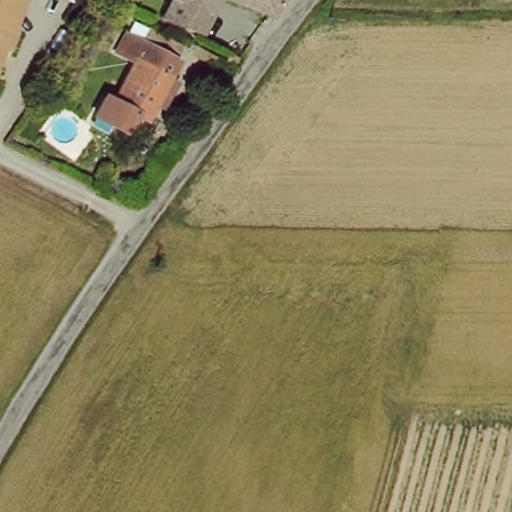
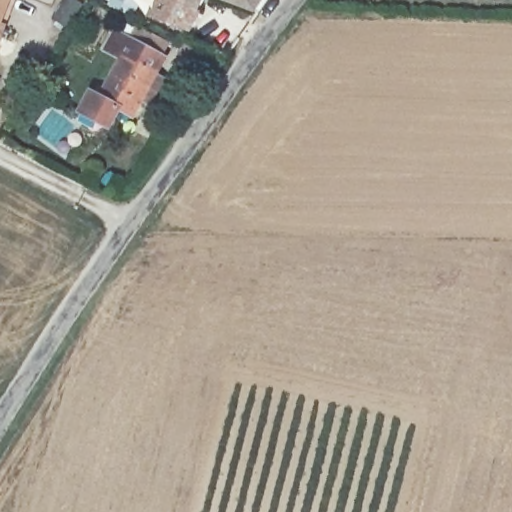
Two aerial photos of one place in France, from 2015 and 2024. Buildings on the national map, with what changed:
unchanged [(1,0),(0,3),(0,0),(1,0)]
unchanged [(151,19),(161,0),(205,0),(185,35),(151,19)]
unchanged [(263,0),(257,15),(220,0),(263,0)]
unchanged [(176,60),(167,75),(176,84),(151,127),(141,122),(127,142),(78,119),(93,87),(105,95),(121,65),(102,55),(114,25),(176,60)]

